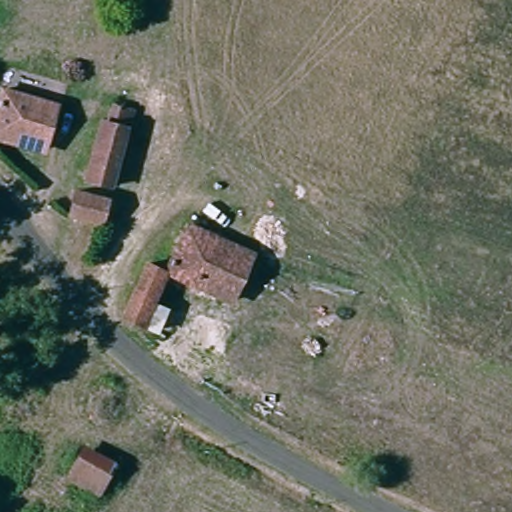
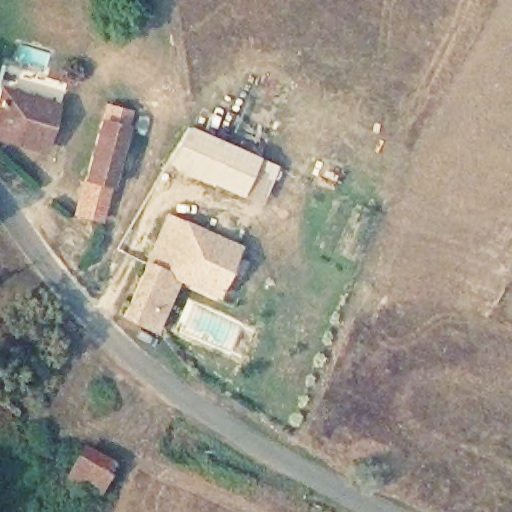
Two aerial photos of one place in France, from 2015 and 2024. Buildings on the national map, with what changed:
unchanged [(45,154),(0,135),(0,81),(63,106),(45,154)]
unchanged [(114,111),(133,120),(111,176),(91,167),(114,111)]
new [(186,125),(261,159),(257,170),(272,177),(261,204),(166,164),(186,125)]
unchanged [(109,195),(99,222),(66,210),(75,182),(109,195)]
unchanged [(187,220),(262,253),(259,262),(242,301),(184,276),(163,322),(142,314),(187,220)]
unchanged [(81,441),(119,461),(98,494),(63,478),(81,441)]

